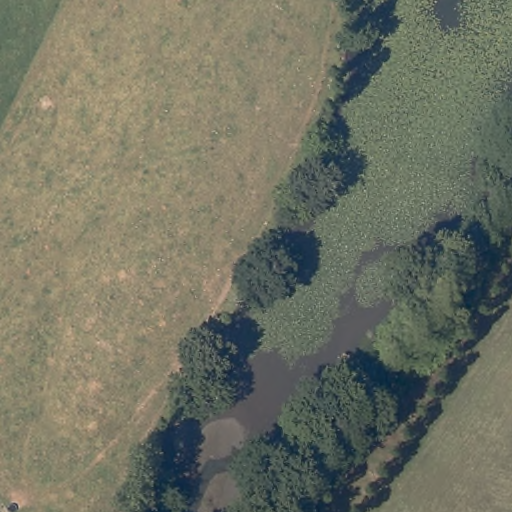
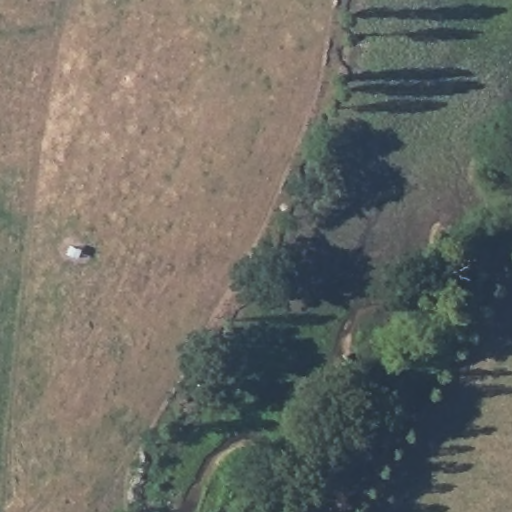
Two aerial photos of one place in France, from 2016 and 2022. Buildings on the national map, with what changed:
[]

